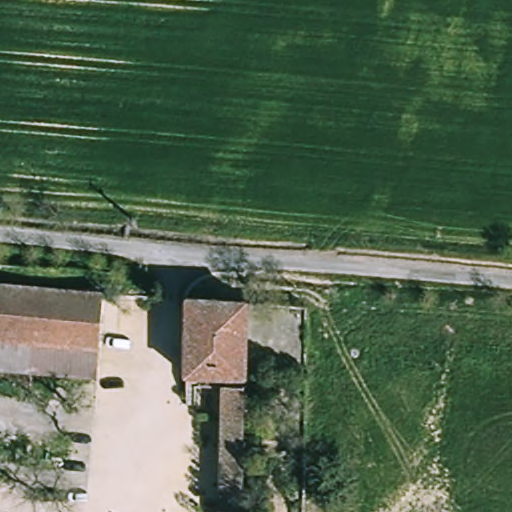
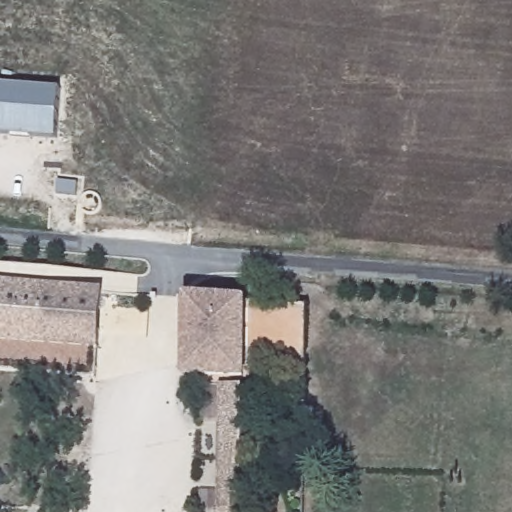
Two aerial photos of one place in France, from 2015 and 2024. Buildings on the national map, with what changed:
new [(56,139),(0,134),(0,84),(63,89),(56,139)]
unchanged [(0,375),(0,283),(103,292),(95,384),(0,375)]
unchanged [(306,384),(186,376),(186,291),(306,303),(306,384)]
unchanged [(241,387),(241,512),(223,512),(223,386),(241,387)]

